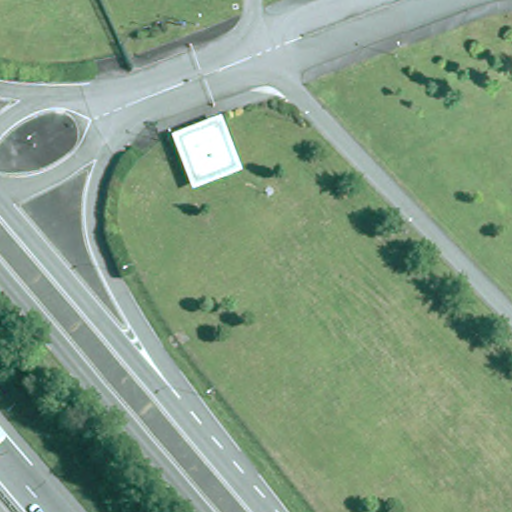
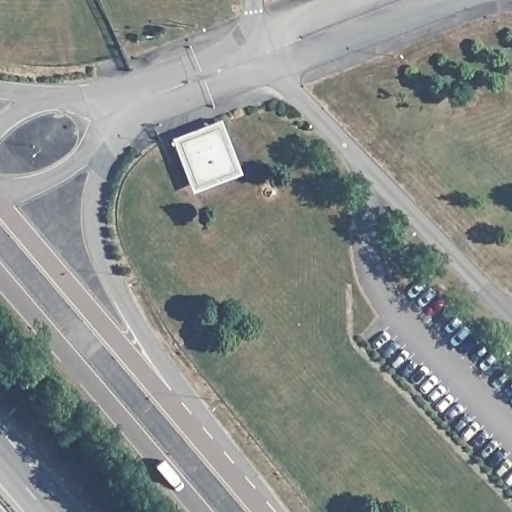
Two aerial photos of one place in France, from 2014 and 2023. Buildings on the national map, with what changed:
unchanged [(179,144),(195,130),(208,123),(209,127),(228,162),(193,176),(187,160),(179,144)]

